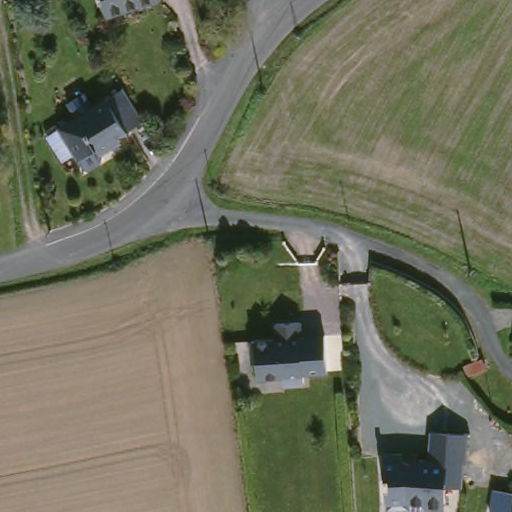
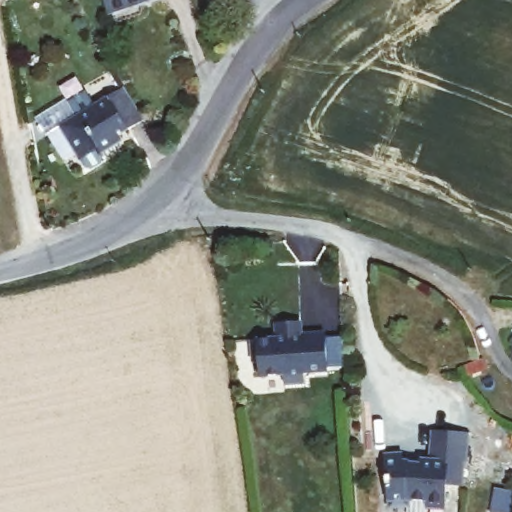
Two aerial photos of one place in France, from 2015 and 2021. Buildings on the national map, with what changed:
unchanged [(109,16),(104,0),(157,0),(109,16)]
unchanged [(140,126),(113,139),(116,146),(94,157),(91,150),(73,159),(57,125),(123,94),(140,126)]
unchanged [(296,333),(302,336),(305,334),(320,333),(323,369),(299,371),(300,381),(280,383),(279,374),(254,376),(253,361),(248,361),(246,339),(271,337),(270,322),(295,319),(296,333)]
unchanged [(407,458),(410,462),(421,463),(421,458),(429,458),(431,429),(465,431),(463,460),(461,484),(446,483),(444,505),(426,504),(426,500),(407,499),(408,502),(404,506),(392,507),(388,504),(387,501),(386,501),(382,454),(400,453),(401,458),(407,458)]

